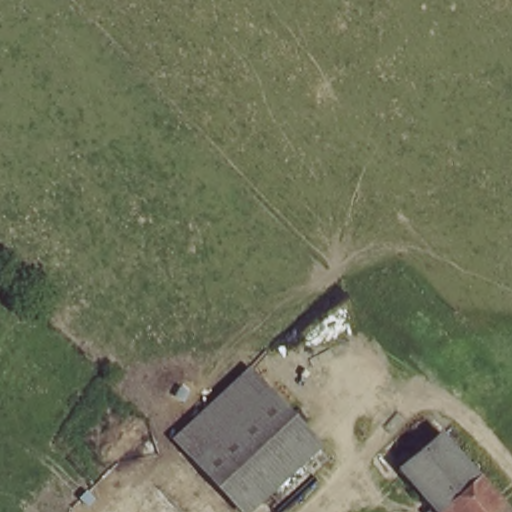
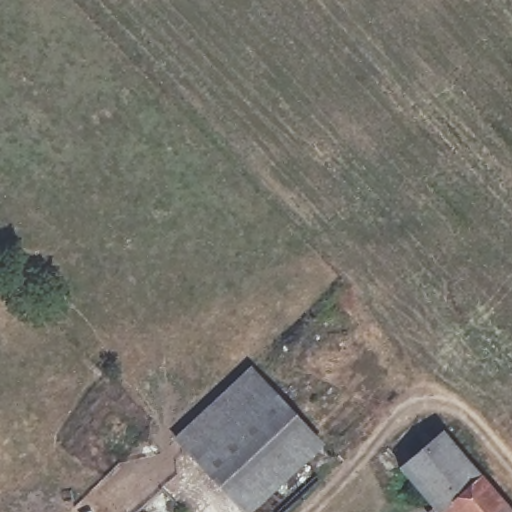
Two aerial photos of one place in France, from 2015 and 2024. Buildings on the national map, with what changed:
unchanged [(169,429),(245,358),(263,378),(188,449),(169,429)]
unchanged [(263,378),(317,434),(242,507),(188,449),(263,378)]
unchanged [(448,428),(512,505),(512,512),(443,512),(404,465),(448,428)]
unchanged [(333,452),(269,512),(247,512),(242,507),(317,434),(333,452)]

